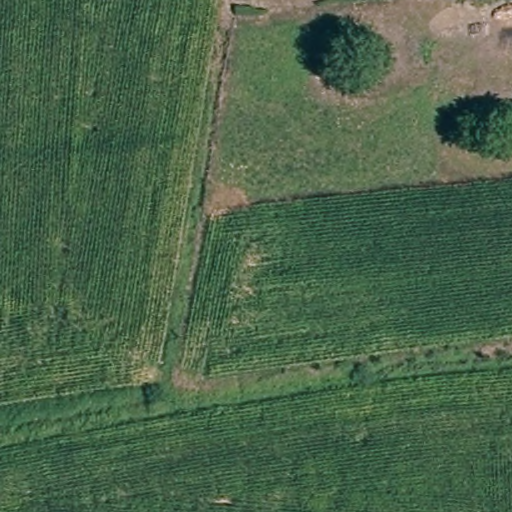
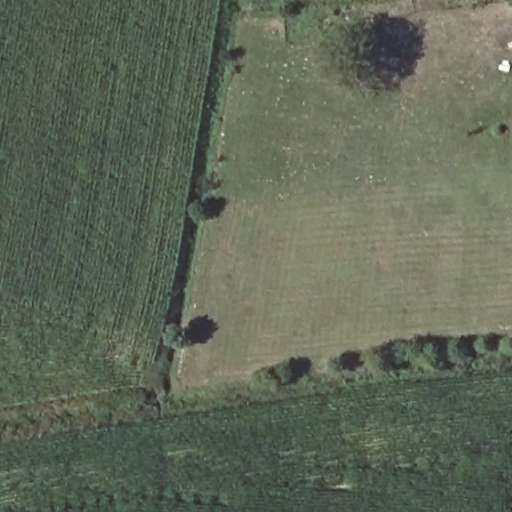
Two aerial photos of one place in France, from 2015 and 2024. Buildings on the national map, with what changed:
[]

